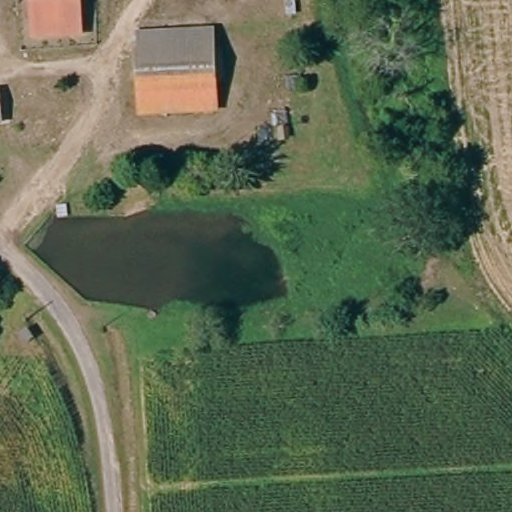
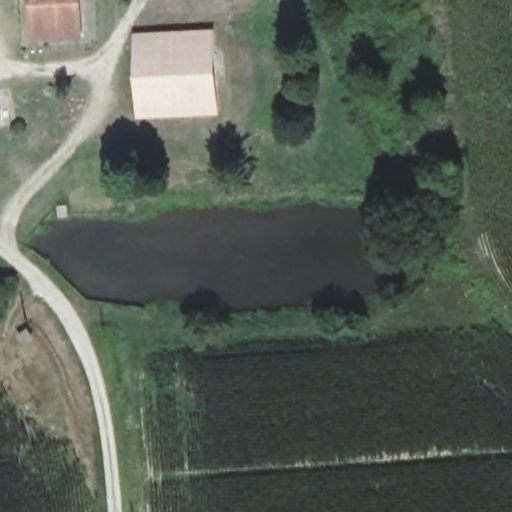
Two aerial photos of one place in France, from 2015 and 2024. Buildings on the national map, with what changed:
unchanged [(34,0),(80,0),(80,39),(34,37),(34,0)]
unchanged [(143,27),(219,35),(211,129),(135,121),(143,27)]

